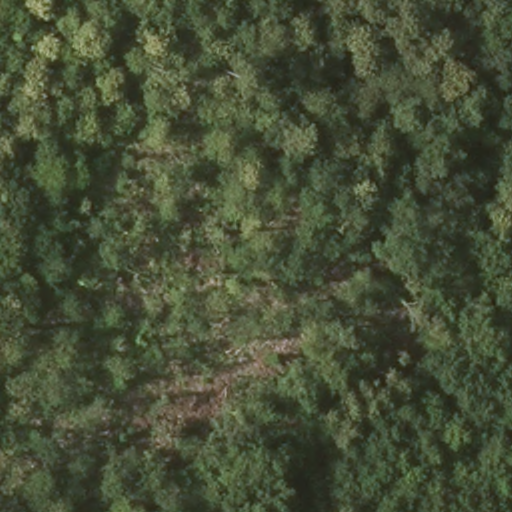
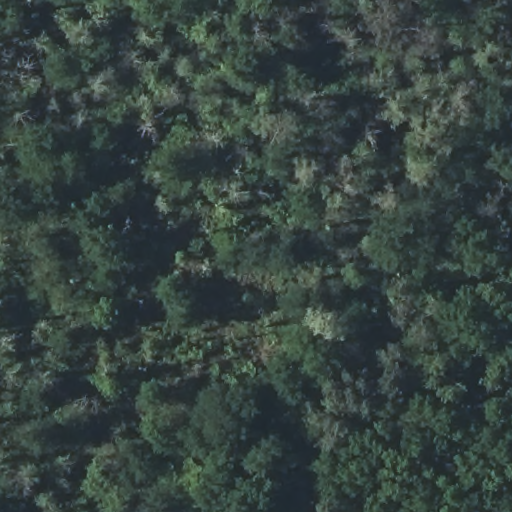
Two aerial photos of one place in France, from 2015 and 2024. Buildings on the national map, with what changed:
unchanged [(0,43),(0,21),(15,11),(25,25),(0,43)]

